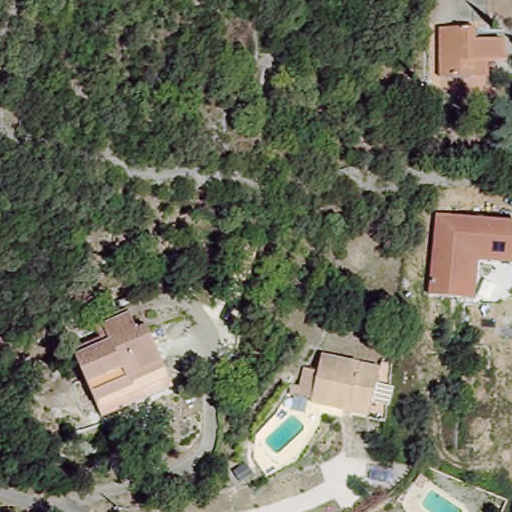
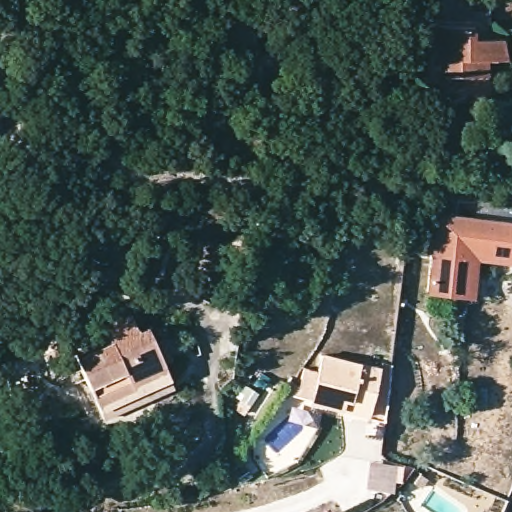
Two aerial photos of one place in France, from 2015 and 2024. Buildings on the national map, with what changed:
unchanged [(480,78),(445,77),(446,28),(460,29),(461,0),(495,0),(494,35),(509,36),(507,58),(495,58),(495,78),(480,78)]
unchanged [(512,218),(512,255),(475,252),(470,297),(432,290),(438,210),(512,218)]
unchanged [(74,352),(107,334),(101,320),(130,305),(135,316),(144,312),(168,361),(134,379),(137,387),(102,404),(96,393),(74,352)]
unchanged [(345,410),(312,403),(326,355),(384,370),(374,404),(371,416),(345,410)]

